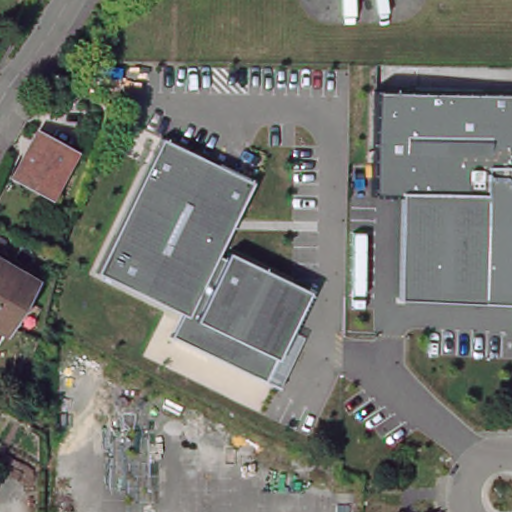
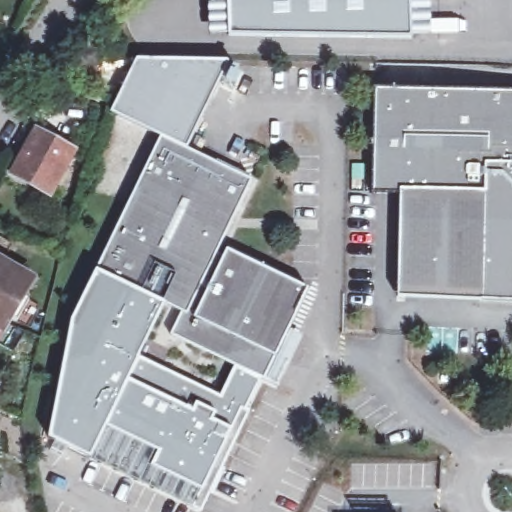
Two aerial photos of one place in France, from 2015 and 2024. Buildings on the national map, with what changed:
new [(228,35),(227,0),(407,0),(408,36),(228,35)]
new [(163,140),(110,113),(137,59),(229,61),(185,151),(163,140)]
unchanged [(512,303),(395,299),(397,194),(372,194),(375,91),(512,95),(512,303)]
unchanged [(52,192),(17,173),(38,133),(72,151),(52,192)]
unchanged [(250,180),(217,252),(225,256),(228,251),(309,291),(291,327),(304,336),(277,387),(174,337),(185,314),(101,272),(163,140),(250,180)]
unchanged [(5,328),(0,325),(0,259),(34,279),(5,328)]
new [(69,325),(95,269),(101,272),(164,303),(138,359),(219,399),(234,366),(259,378),(245,408),(250,409),(200,512),(90,458),(50,438),(69,325)]

